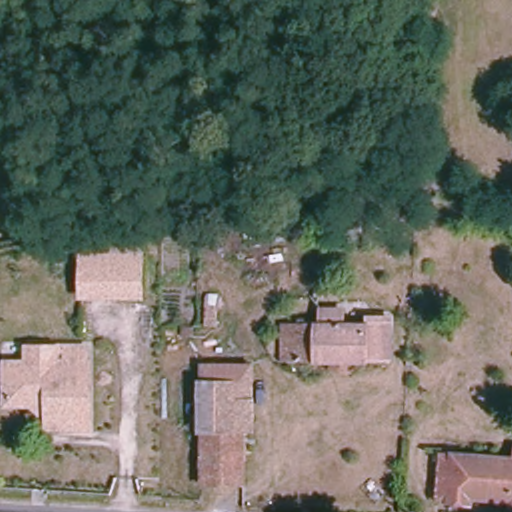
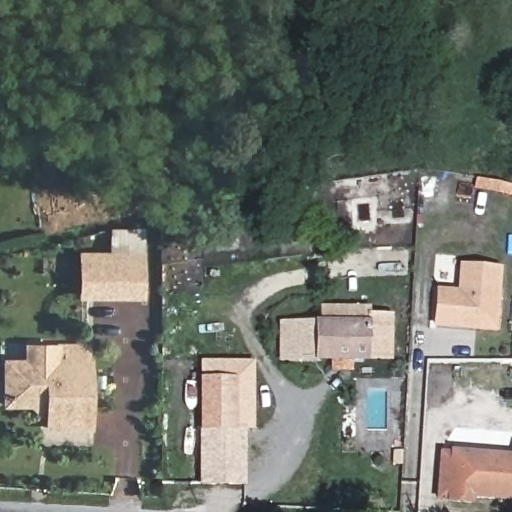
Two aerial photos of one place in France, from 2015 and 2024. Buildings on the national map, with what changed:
unchanged [(81,293),(82,257),(143,259),(142,294),(81,293)]
new [(434,293),(455,295),(457,268),(495,271),(490,332),(431,327),(434,293)]
unchanged [(286,357),(287,320),(305,320),(305,325),(393,327),(392,358),(286,357)]
unchanged [(36,407),(17,407),(6,407),(5,396),(5,362),(30,362),(30,345),(61,345),(91,344),(92,360),(92,427),(48,428),(48,410),(43,415),(36,407)]
unchanged [(202,358),(253,358),(253,422),(244,422),(231,422),(231,377),(202,377),(202,358)]
unchanged [(203,419),(202,377),(231,377),(231,422),(244,422),(243,480),(203,480),(203,419)]
unchanged [(512,458),(512,500),(471,498),(471,505),(438,504),(442,454),(512,458)]

